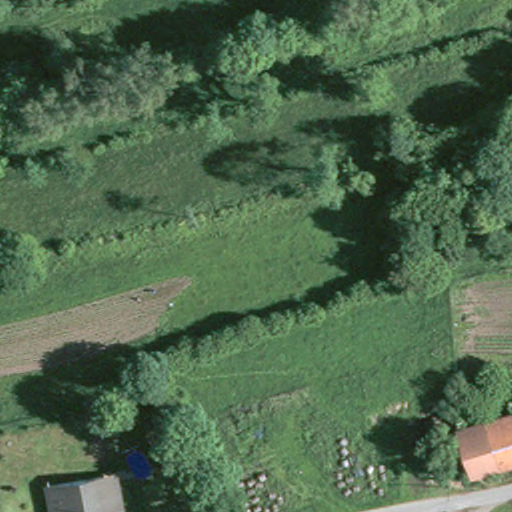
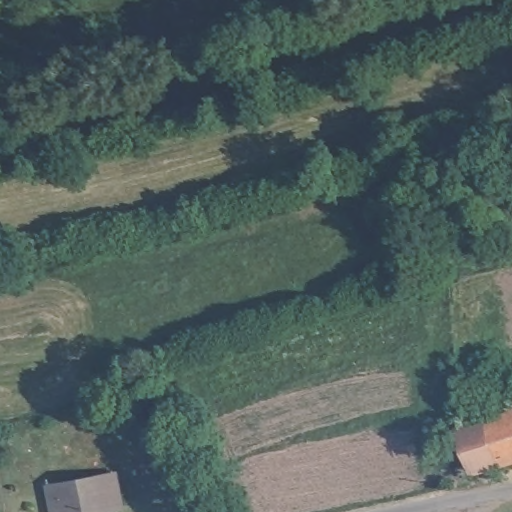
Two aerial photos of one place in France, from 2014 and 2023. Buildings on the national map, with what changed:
unchanged [(512,410),(512,459),(469,473),(456,428),(512,410)]
unchanged [(171,425),(184,448),(166,459),(151,435),(171,425)]
unchanged [(39,510),(35,479),(89,468),(106,465),(114,506),(94,511),(88,512),(67,512),(66,505),(39,510)]

